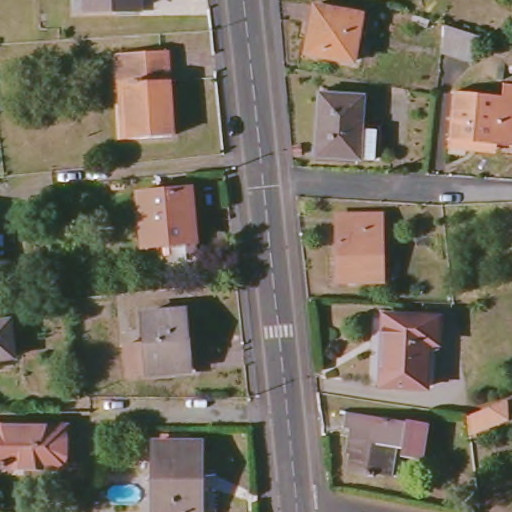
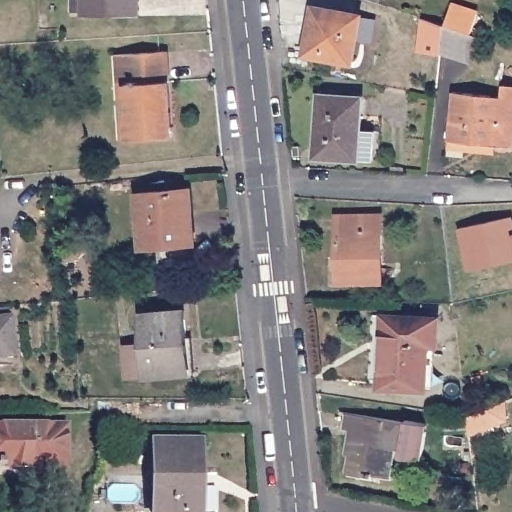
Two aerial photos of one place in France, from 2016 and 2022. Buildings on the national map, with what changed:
unchanged [(90,11),(90,10),(78,10),(78,0),(140,0),(140,11),(90,11)]
unchanged [(361,15),(352,62),(306,54),(315,6),(361,15)]
unchanged [(480,37),(471,63),(441,53),(445,25),(480,37)]
unchanged [(167,51),(172,136),(130,139),(123,139),(117,55),(124,54),(167,51)]
unchanged [(450,140),(453,94),(502,97),(503,85),(512,86),(512,146),(496,145),(495,151),(448,146),(450,140)]
unchanged [(363,97),(360,129),(376,131),(374,161),(315,156),(320,94),(363,97)]
unchanged [(190,183),(193,207),(186,207),(191,260),(161,263),(159,241),(142,242),(137,188),(190,183)]
unchanged [(381,215),(382,281),(338,282),(337,216),(381,215)]
new [(458,229),(512,217),(512,261),(466,272),(458,229)]
unchanged [(185,310),(190,372),(147,376),(141,314),(185,310)]
unchanged [(430,318),(430,319),(438,320),(437,345),(428,345),(426,389),(381,387),(381,385),(370,385),(372,316),(384,317),(384,315),(430,318)]
unchanged [(10,320),(13,358),(0,359),(0,321),(10,320)]
unchanged [(406,423),(406,421),(427,425),(422,460),(401,456),(402,448),(392,447),(388,476),(373,474),(373,476),(350,472),(353,452),(350,452),(353,428),(345,427),(347,412),(406,423)]
unchanged [(65,427),(65,464),(14,464),(14,468),(0,468),(0,426),(65,427)]
unchanged [(201,443),(201,512),(153,512),(153,443),(201,443)]

